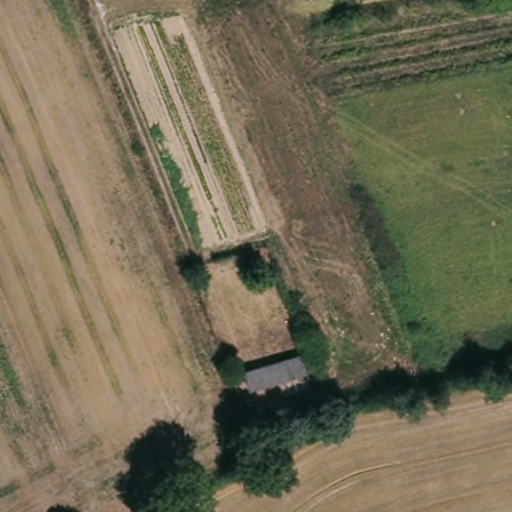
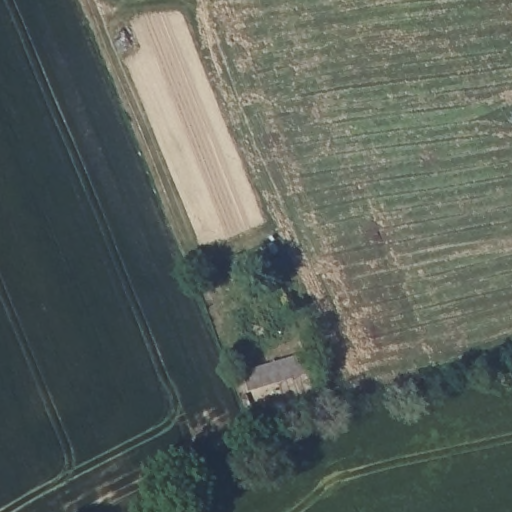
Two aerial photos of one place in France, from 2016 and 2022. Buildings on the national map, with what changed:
unchanged [(302,354),(307,374),(249,392),(242,372),(302,354)]

